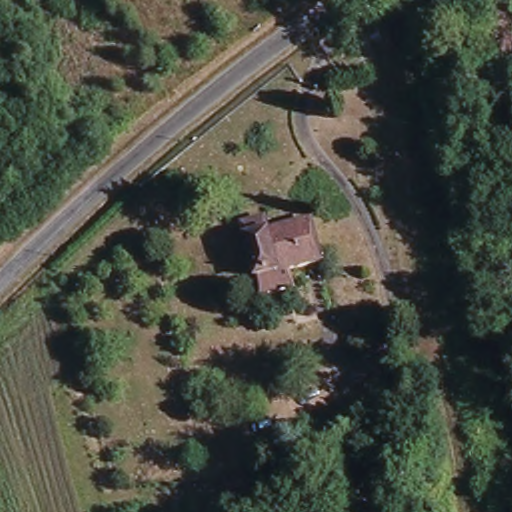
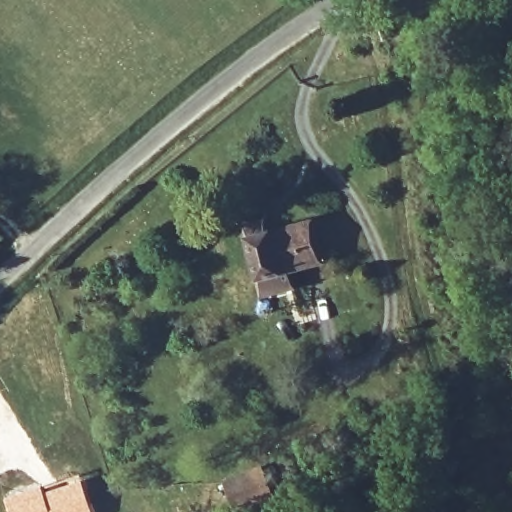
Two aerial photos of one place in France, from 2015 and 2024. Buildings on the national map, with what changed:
unchanged [(319,264),(256,281),(242,227),(262,222),(265,234),(308,222),(319,264)]
demolished [(269,496),(233,506),(227,483),(262,473),(269,496)]
new [(41,485),(42,489),(80,476),(91,512),(8,512),(3,497),(41,485)]

